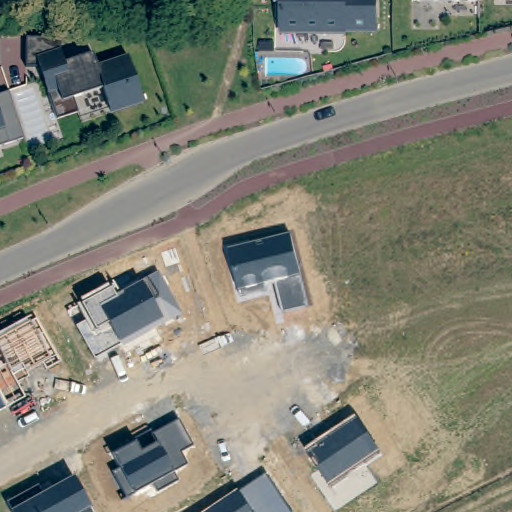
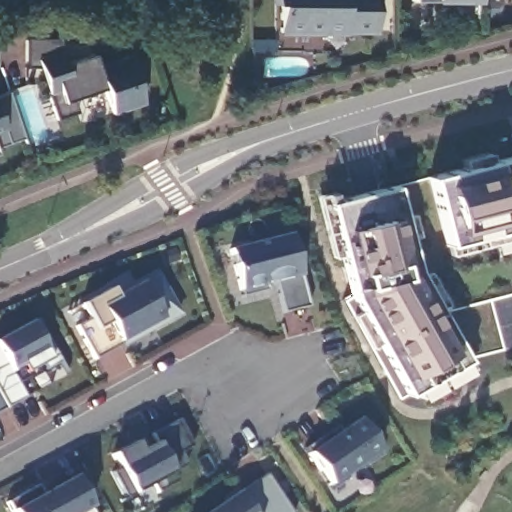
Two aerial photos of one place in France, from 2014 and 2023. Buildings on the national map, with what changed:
unchanged [(345,30),(345,33),(280,32),(280,4),(275,4),(275,0),(376,0),(376,30),(345,30)]
unchanged [(412,1),(412,0),(480,0),(479,1),(412,1)]
unchanged [(56,120),(48,94),(39,68),(25,68),(26,38),(60,38),(60,53),(64,63),(92,54),(97,67),(128,57),(141,98),(143,103),(111,114),(103,89),(73,99),(78,113),(56,120)]
unchanged [(17,118),(24,139),(0,147),(0,94),(8,91),(17,118)]
new [(512,168),(512,243),(455,259),(441,188),(512,168)]
new [(398,193),(416,260),(479,368),(414,404),(362,308),(339,212),(398,193)]
unchanged [(292,235),(301,274),(308,307),(283,313),(275,285),(266,287),(267,292),(241,298),(239,290),(229,250),(292,235)]
unchanged [(88,318),(82,305),(111,289),(116,297),(140,284),(138,281),(158,272),(180,314),(163,321),(121,344),(93,361),(75,327),(88,318)]
unchanged [(61,362),(45,371),(41,365),(27,373),(30,378),(17,384),(24,399),(5,408),(0,398),(0,339),(36,319),(61,362)]
unchanged [(0,411),(0,398),(5,408),(0,411)]
unchanged [(306,448),(336,427),(340,433),(358,419),(382,451),(331,486),(310,453),(306,448)]
unchanged [(136,437),(149,431),(151,435),(176,421),(191,445),(180,453),(186,465),(172,472),(177,482),(155,494),(149,487),(132,496),(125,499),(111,473),(115,471),(105,452),(136,437)]
unchanged [(293,512),(209,512),(239,491),(266,474),(293,512)]
unchanged [(7,502),(46,479),(51,488),(73,477),(90,509),(92,512),(13,512),(12,512),(7,502)]

